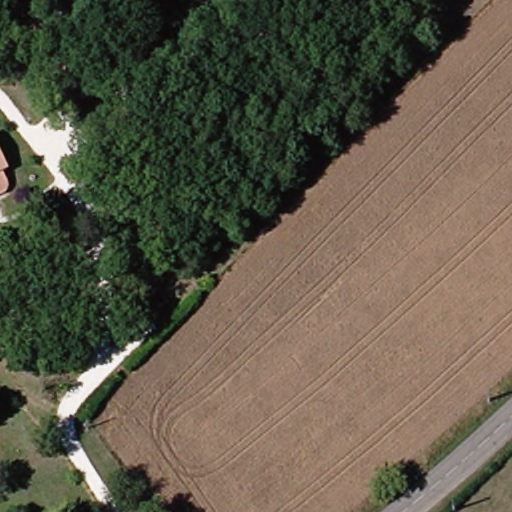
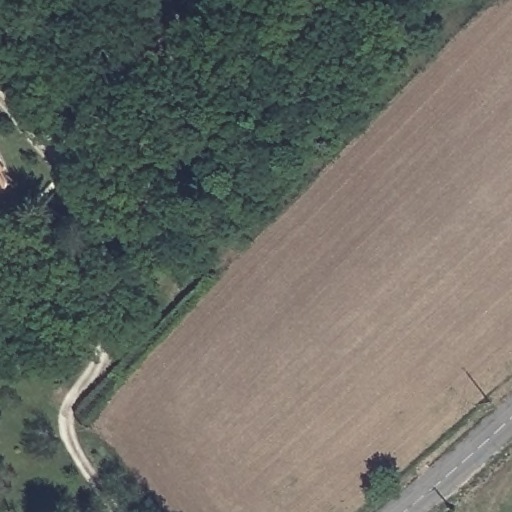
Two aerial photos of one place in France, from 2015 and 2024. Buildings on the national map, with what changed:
unchanged [(5,171),(0,173),(0,160),(5,171)]
unchanged [(8,192),(0,196),(0,176),(8,192)]

